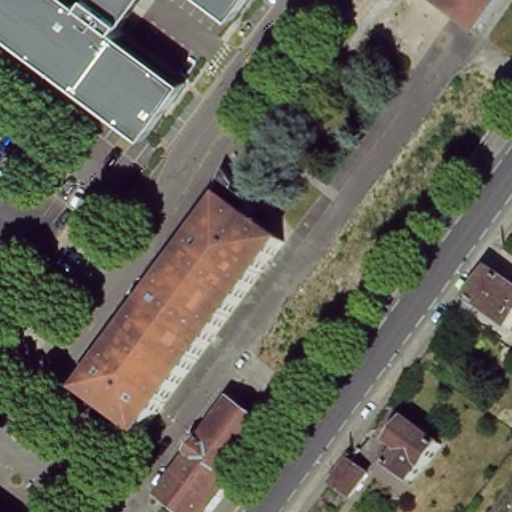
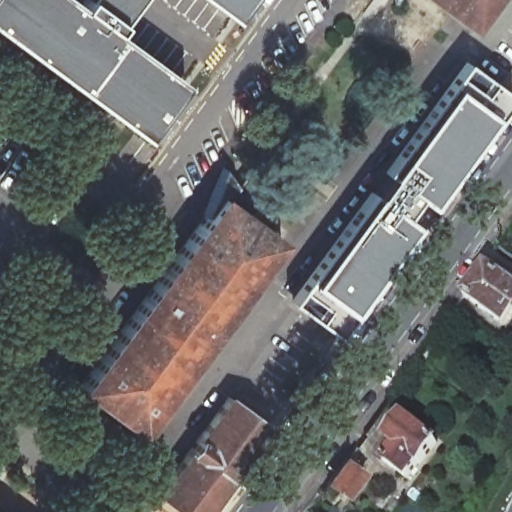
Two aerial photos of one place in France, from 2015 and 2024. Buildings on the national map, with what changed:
unchanged [(0,0),(70,0),(80,7),(85,0),(138,0),(115,32),(185,85),(145,138),(0,33),(0,0)]
unchanged [(232,19),(206,0),(246,0),(232,19)]
unchanged [(435,0),(497,0),(475,30),(435,0)]
new [(512,96),(512,97),(494,116),(427,205),(415,195),(401,215),(414,224),(349,311),(354,315),(336,337),(286,301),(304,279),(306,282),(452,86),(448,83),(464,60),(512,96)]
demolished [(258,352),(268,338),(282,319),(352,224),(366,205),(380,187),(409,149),(464,74),(507,105),(301,384),(258,352)]
unchanged [(211,217),(205,215),(224,169),(253,213),(243,214),(280,242),(139,433),(83,391),(211,217)]
unchanged [(508,298),(492,319),(455,292),(478,261),(512,286),(512,302),(508,298)]
unchanged [(498,323),(507,312),(512,305),(512,325),(508,330),(498,323)]
unchanged [(268,429),(224,488),(207,512),(167,512),(152,500),(227,400),(248,416),(268,429)]
unchanged [(425,472),(422,470),(411,485),(390,468),(401,453),(392,447),(409,424),(443,448),(425,472)]
unchanged [(328,483),(345,460),(363,473),(346,497),(328,483)]

